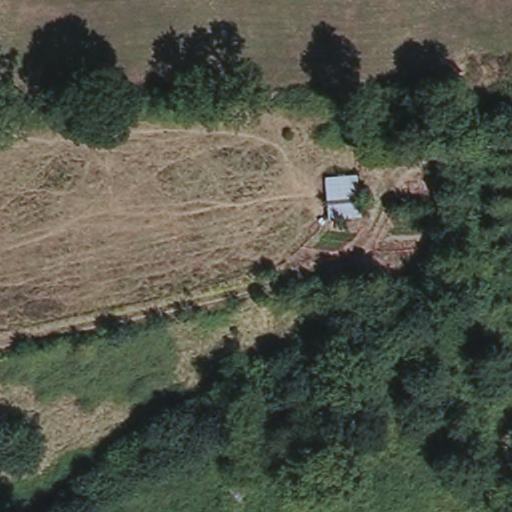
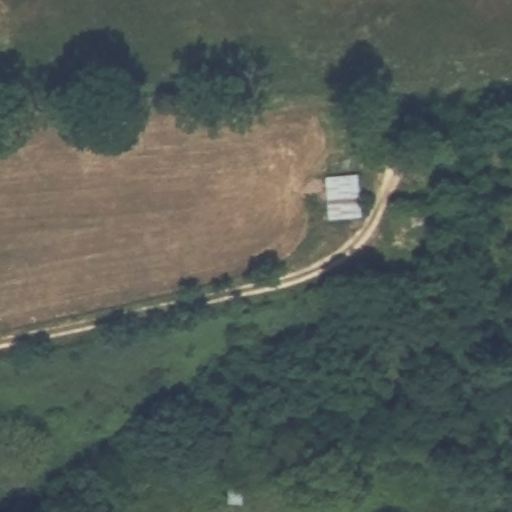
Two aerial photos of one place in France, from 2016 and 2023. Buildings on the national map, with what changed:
unchanged [(246,478),(245,501),(227,500),(227,477),(246,478)]

